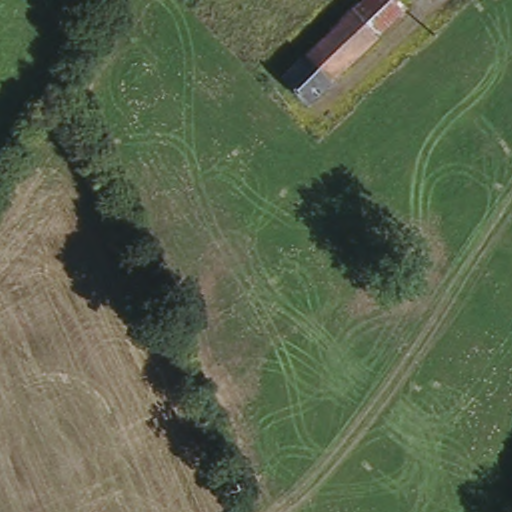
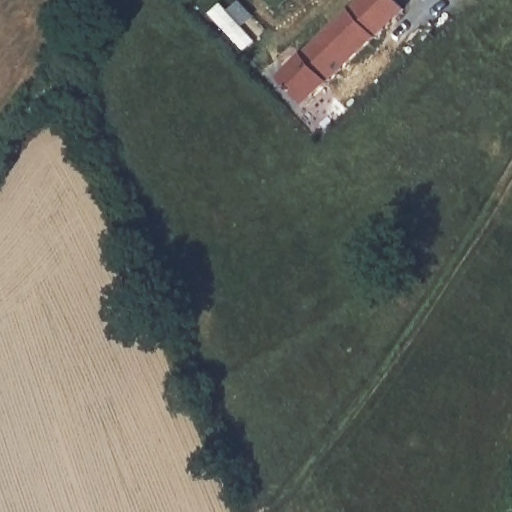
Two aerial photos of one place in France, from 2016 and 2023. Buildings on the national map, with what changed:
unchanged [(399,0),(408,10),(308,105),(284,81),(369,0),(399,0)]

